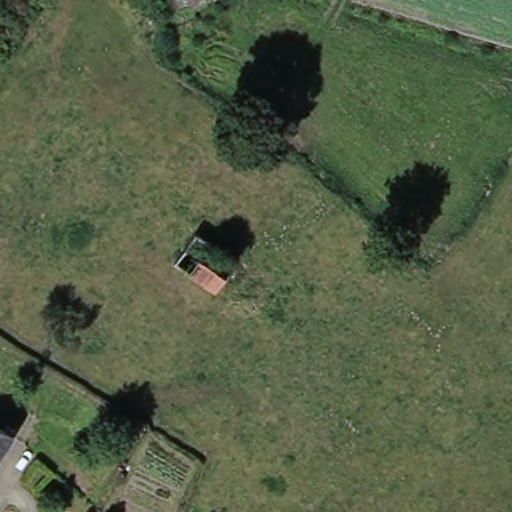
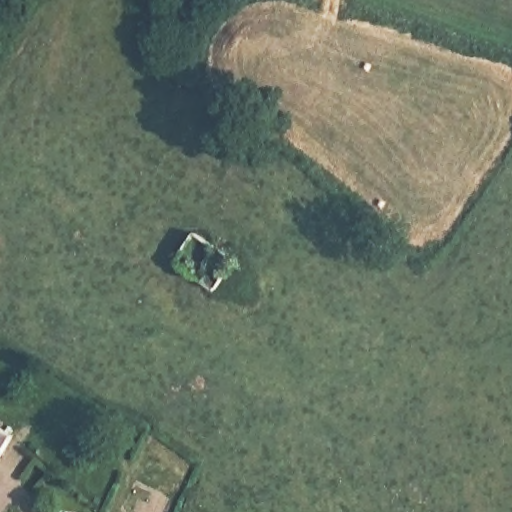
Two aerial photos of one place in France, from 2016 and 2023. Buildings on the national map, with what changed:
unchanged [(190,8),(181,0),(199,0),(190,8)]
unchanged [(215,294),(172,266),(195,234),(236,262),(215,294)]
unchanged [(0,469),(0,428),(18,439),(0,469)]

